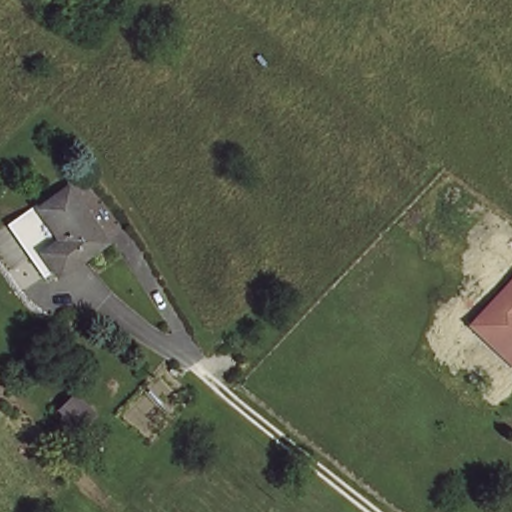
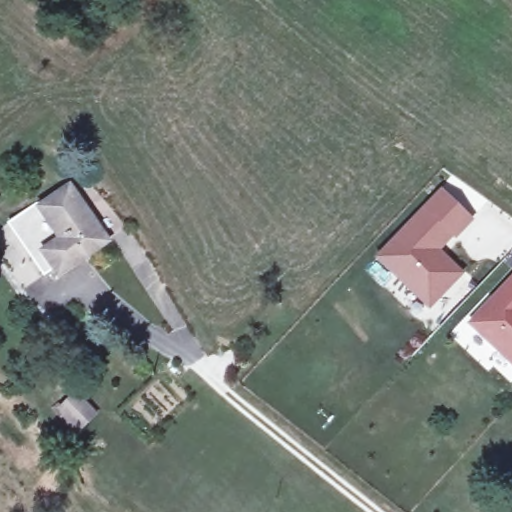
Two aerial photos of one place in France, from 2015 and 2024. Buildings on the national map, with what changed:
unchanged [(104,241),(58,277),(41,254),(61,240),(40,210),(65,192),(104,241)]
new [(442,192),(471,219),(456,235),(454,232),(433,255),(439,262),(444,256),(462,273),(431,305),(381,257),(442,192)]
unchanged [(466,325),(512,277),(512,367),(466,325)]

